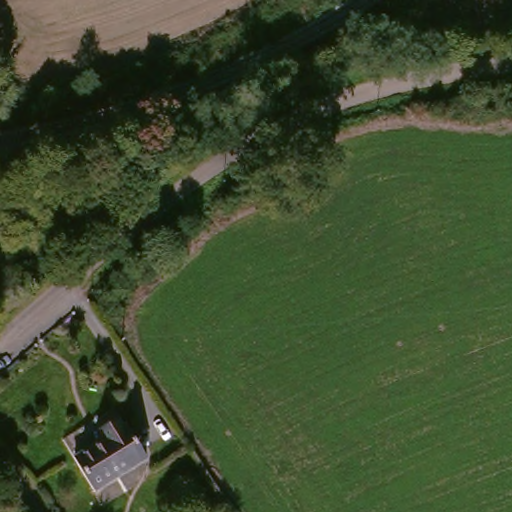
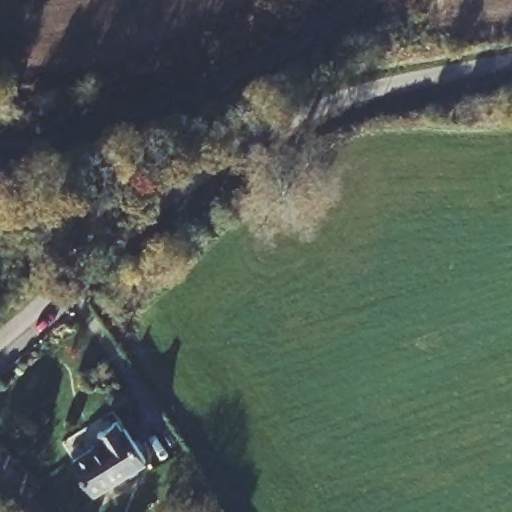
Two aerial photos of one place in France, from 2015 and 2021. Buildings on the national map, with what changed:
unchanged [(86,499),(65,463),(97,441),(90,431),(112,416),(142,462),(86,499)]

